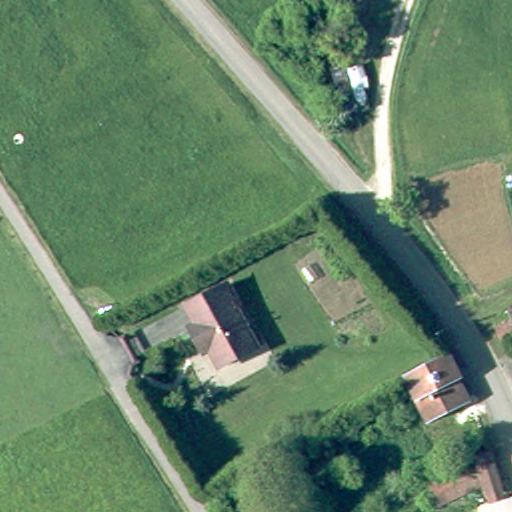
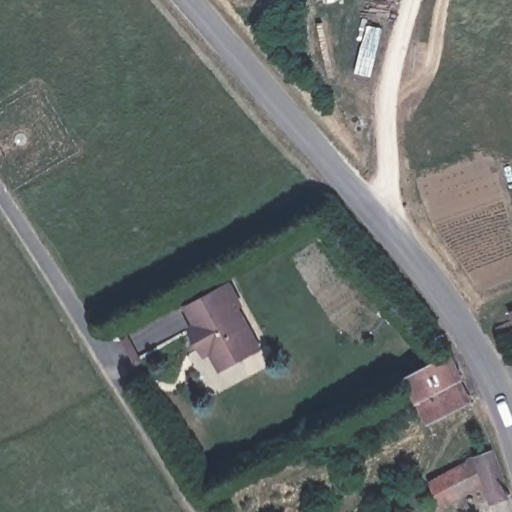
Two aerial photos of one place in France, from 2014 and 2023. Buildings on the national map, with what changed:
unchanged [(203,339),(194,321),(200,317),(191,300),(232,278),(243,298),(239,301),(260,342),(223,361),(212,343),(207,346),(203,339)]
unchanged [(501,323),(512,318),(512,327),(504,330),(501,323)]
unchanged [(408,377),(443,358),(452,354),(463,376),(462,378),(465,383),(469,391),(472,399),(432,422),(413,386),(408,377)]
unchanged [(432,477),(470,455),(469,451),(493,443),(497,453),(503,472),(509,492),(493,498),(487,478),(444,497),(432,477)]

